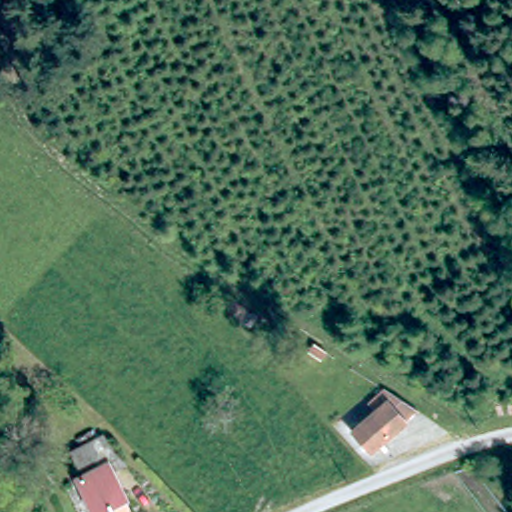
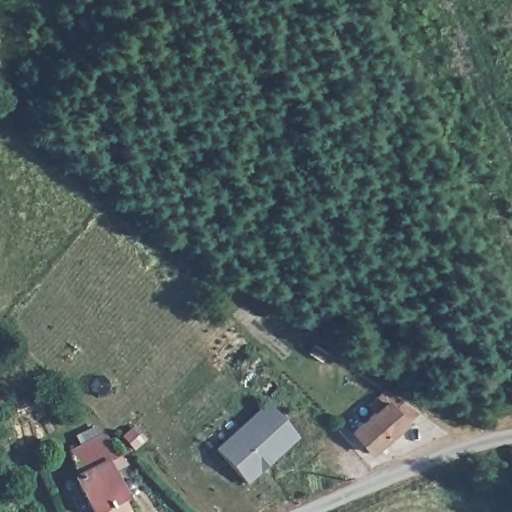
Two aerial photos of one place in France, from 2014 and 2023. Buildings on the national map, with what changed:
unchanged [(366,458),(348,437),(379,411),(369,401),(375,394),(413,418),(366,458)]
new [(299,437),(248,484),(215,448),(266,402),(299,437)]
unchanged [(77,490),(81,487),(72,466),(114,447),(126,476),(111,482),(125,512),(87,512),(77,490)]

